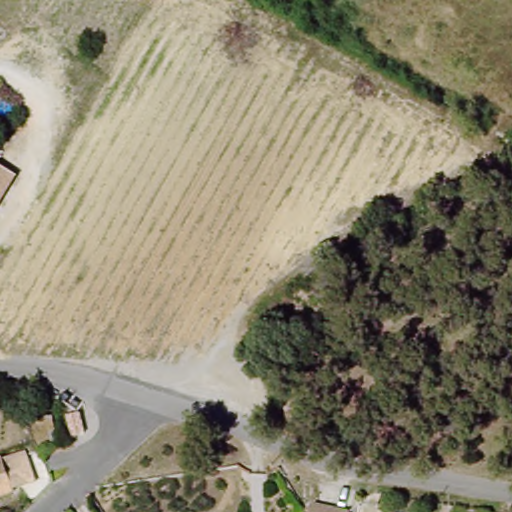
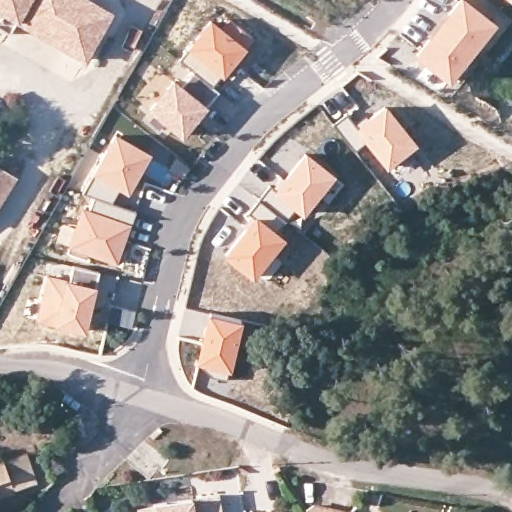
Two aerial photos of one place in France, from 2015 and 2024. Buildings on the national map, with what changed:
new [(114,14),(89,62),(18,23),(0,12),(0,0),(90,0),(114,14)]
new [(457,0),(468,0),(496,24),(448,84),(412,55),(457,0)]
new [(512,2),(510,0),(512,0),(512,1),(512,2)]
new [(211,18),(223,27),(230,18),(254,38),(212,86),(179,58),(211,18)]
new [(181,137),(144,107),(135,99),(161,69),(171,76),(207,106),(181,137)]
new [(416,144),(386,168),(360,140),(352,145),(335,124),(346,116),(355,127),(384,104),(416,144)]
new [(66,250),(67,246),(56,243),(62,223),(74,226),(80,205),(87,208),(91,197),(84,194),(90,175),(114,132),(151,154),(128,195),(119,190),(113,203),(135,211),(131,224),(117,268),(66,250)]
new [(273,255),(257,275),(252,280),(221,257),(250,215),(248,213),(249,212),(268,189),(305,150),(334,176),(302,216),(293,210),(285,219),(283,218),(279,222),(280,223),(275,229),(285,238),(273,255)]
unchanged [(3,189),(0,194),(0,187),(3,189)]
new [(73,267),(99,273),(96,285),(84,332),(53,324),(54,323),(35,321),(46,274),(69,279),(73,267)]
new [(205,314),(242,322),(229,375),(194,365),(205,314)]
unchanged [(79,418),(86,426),(75,436),(68,427),(79,418)]
unchanged [(25,455),(33,484),(0,497),(0,462),(25,455)]
new [(195,512),(193,499),(218,493),(221,512),(195,512)]
new [(195,512),(136,512),(136,508),(193,499),(195,512)]
unchanged [(314,506),(342,512),(306,512),(305,510),(314,506)]

